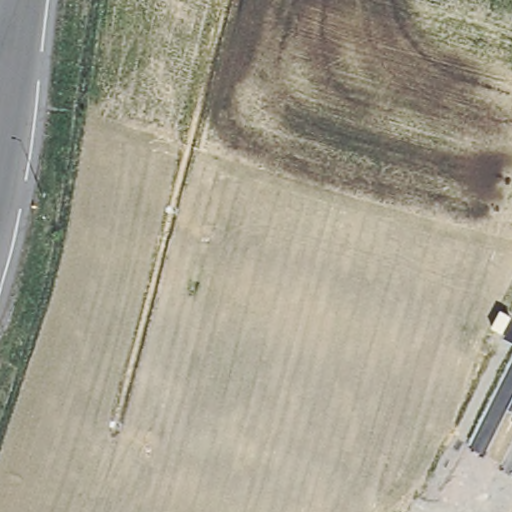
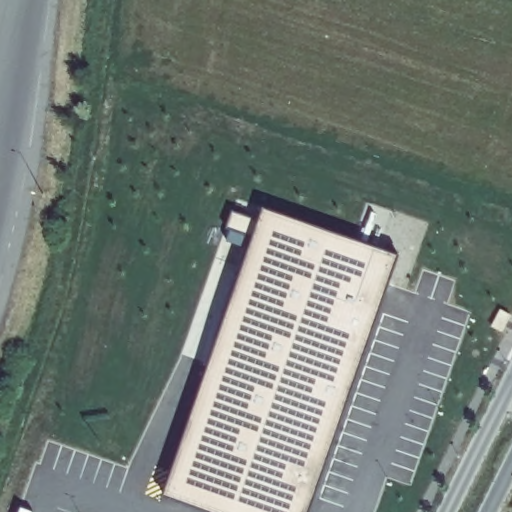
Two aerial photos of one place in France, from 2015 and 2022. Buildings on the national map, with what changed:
new [(398,256),(308,512),(207,512),(163,497),(262,210),(398,256)]
new [(500,310),(510,315),(501,331),(492,326),(500,310)]

